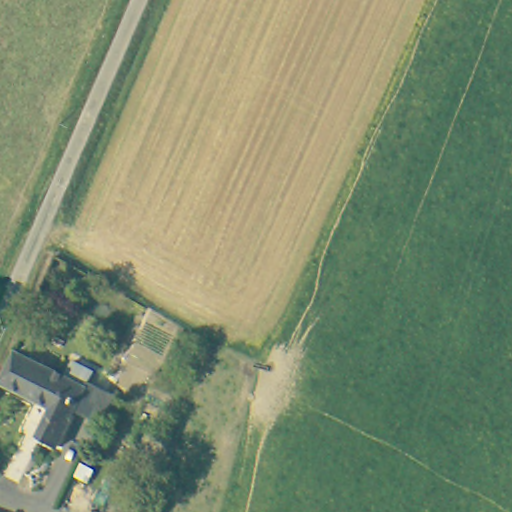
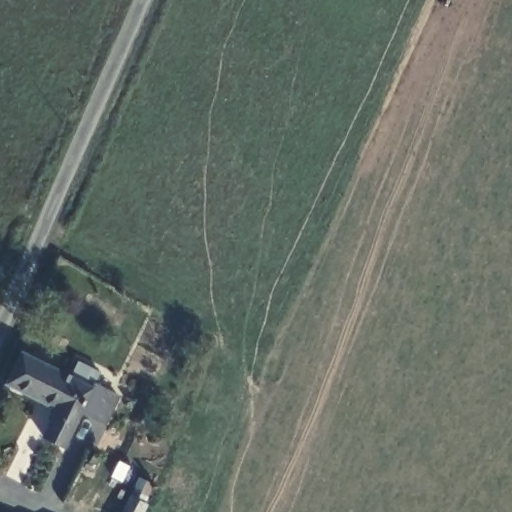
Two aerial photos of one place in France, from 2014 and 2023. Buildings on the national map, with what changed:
unchanged [(95,414),(79,406),(62,440),(42,430),(55,406),(4,380),(21,346),(68,370),(76,355),(99,366),(93,377),(110,385),(95,414)]
unchanged [(142,506),(140,512),(118,512),(124,497),(142,506)]

